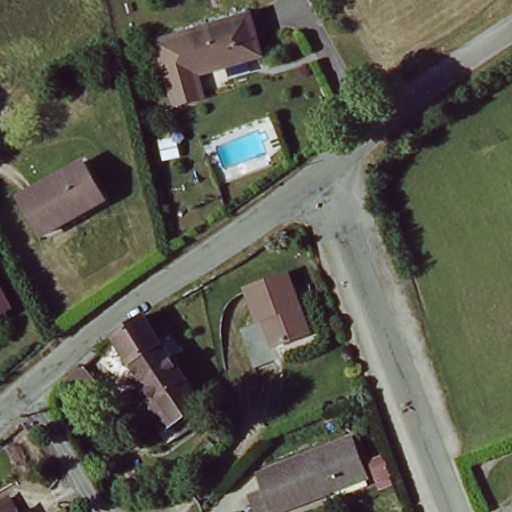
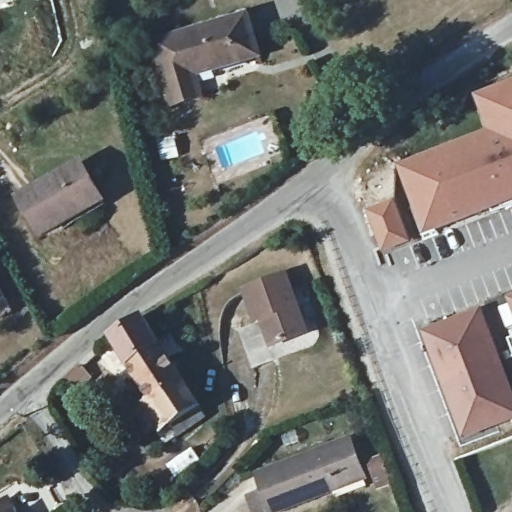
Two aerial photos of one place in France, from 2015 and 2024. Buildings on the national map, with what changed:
unchanged [(176,36),(203,29),(273,12),(283,52),(245,62),(242,57),(213,65),(215,70),(220,92),(192,99),(186,77),(176,36)]
new [(489,131),(477,97),(512,83),(512,204),(428,237),(400,167),(489,131)]
unchanged [(73,221),(71,217),(41,235),(20,195),(82,158),(100,190),(107,202),(73,221)]
new [(393,199),(410,243),(383,254),(366,210),(393,199)]
unchanged [(290,275),(312,334),(277,347),(270,327),(273,325),(271,318),(261,322),(250,290),(290,275)]
new [(508,298),(512,297),(512,307),(508,298)]
new [(512,401),(512,426),(458,448),(415,335),(479,312),(512,401)]
unchanged [(198,407),(170,425),(117,342),(109,347),(105,342),(114,335),(115,334),(135,323),(137,322),(144,318),(198,407)]
new [(512,338),(512,346),(510,338),(512,338)]
unchanged [(92,372),(75,387),(67,377),(81,363),(83,361),(92,372)]
unchanged [(267,488),(260,471),(350,433),(364,466),(367,472),(333,487),(276,510),(275,506),(261,512),(260,512),(252,494),(267,488)]
unchanged [(11,512),(1,512),(9,508),(11,512)]

